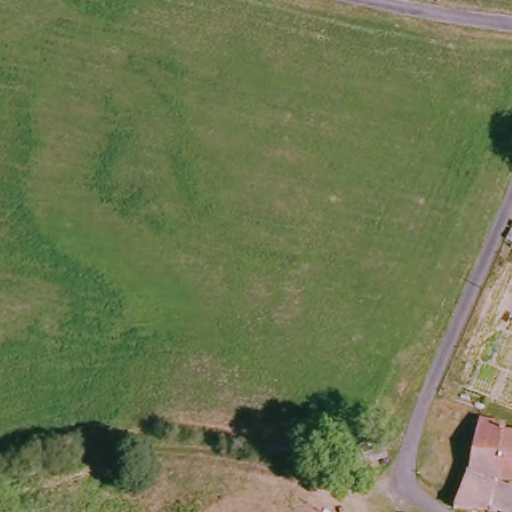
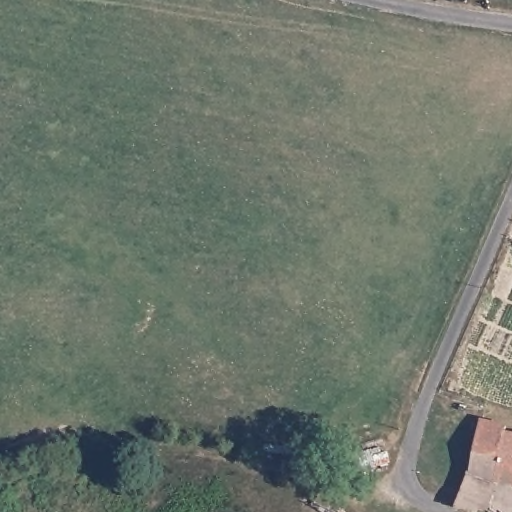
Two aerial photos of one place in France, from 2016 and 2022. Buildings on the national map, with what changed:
unchanged [(510,438),(512,438),(512,482),(501,480),(496,509),(464,502),(469,472),(477,430),(510,438)]

